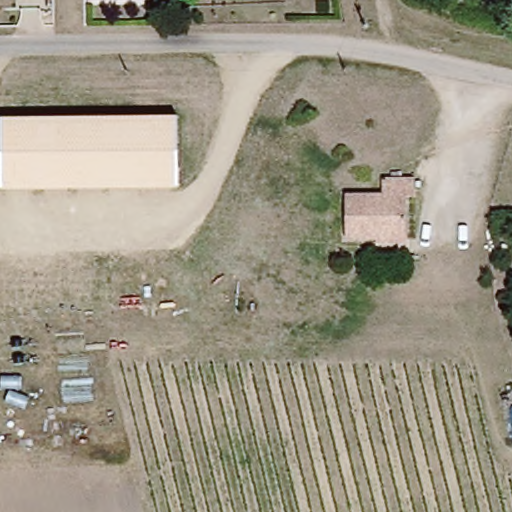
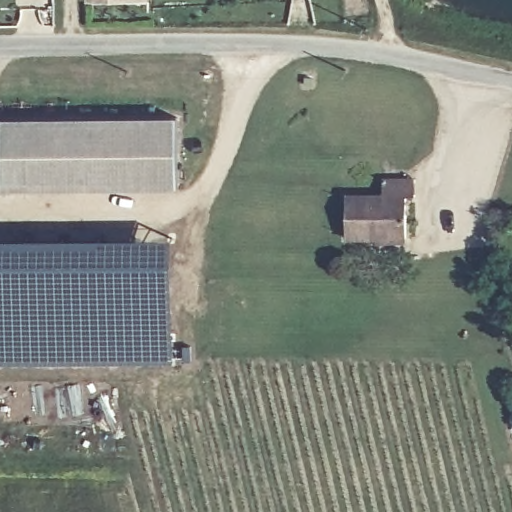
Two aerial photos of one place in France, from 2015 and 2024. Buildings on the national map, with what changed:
unchanged [(176,117),(177,189),(2,190),(0,119),(176,117)]
unchanged [(343,197),(379,198),(381,179),(416,180),(414,197),(406,197),(405,241),(342,240),(343,197)]
new [(118,236),(153,233),(173,236),(171,315),(173,362),(74,365),(0,365),(0,237),(118,236)]

